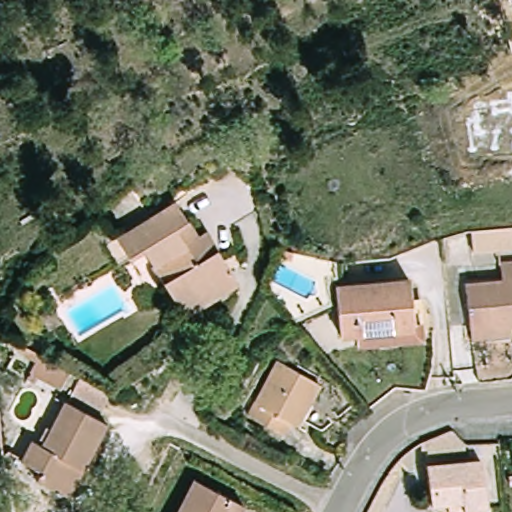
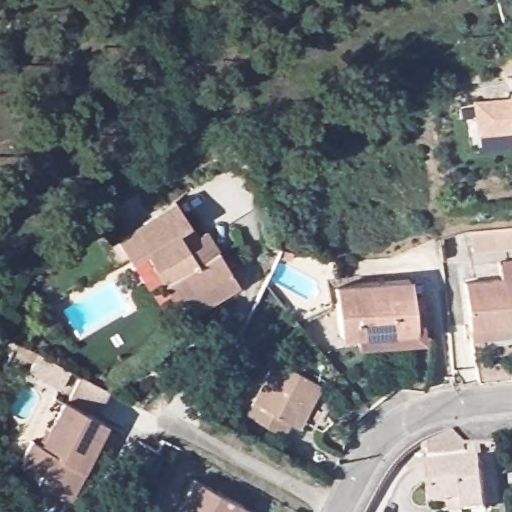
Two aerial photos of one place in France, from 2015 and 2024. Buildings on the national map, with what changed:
new [(512,142),(511,130),(474,133),(474,100),(507,98),(506,92),(512,91),(512,142)]
unchanged [(148,251),(134,260),(121,237),(179,201),(201,236),(208,231),(241,282),(188,315),(148,251)]
unchanged [(512,228),(512,249),(498,250),(496,230),(512,228)]
unchanged [(281,250),(293,252),(291,260),(277,257),(281,250)]
unchanged [(476,339),(475,330),(471,284),(508,280),(506,264),(512,263),(512,335),(476,339)]
unchanged [(429,306),(423,306),(426,333),(363,340),(361,330),(344,331),(340,281),(414,275),(417,295),(428,293),(429,306)]
unchanged [(51,308),(59,322),(47,329),(39,315),(51,308)]
unchanged [(73,370),(63,389),(33,373),(43,355),(73,370)]
unchanged [(280,361),(324,385),(301,426),(294,422),(288,435),(251,415),(280,361)]
unchanged [(109,423),(70,496),(39,480),(43,471),(24,461),(35,441),(45,446),(68,401),(60,397),(74,371),(113,391),(99,418),(109,423)]
unchanged [(427,439),(434,436),(438,435),(443,433),(448,431),(453,430),(464,444),(465,450),(428,453),(427,439)]
unchanged [(462,512),(447,512),(447,503),(431,505),(427,465),(481,460),(486,510),(462,512)]
unchanged [(248,505),(244,512),(182,512),(198,480),(248,505)]

